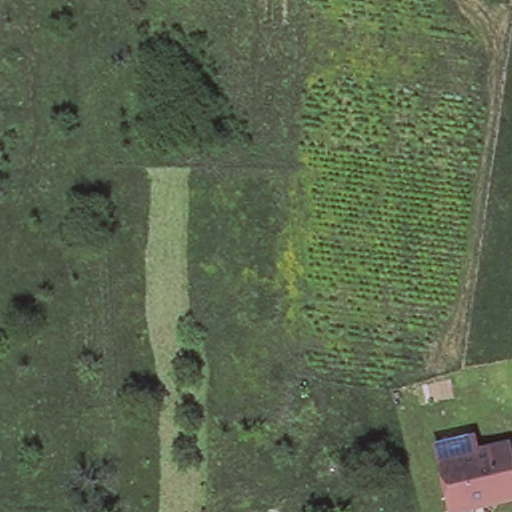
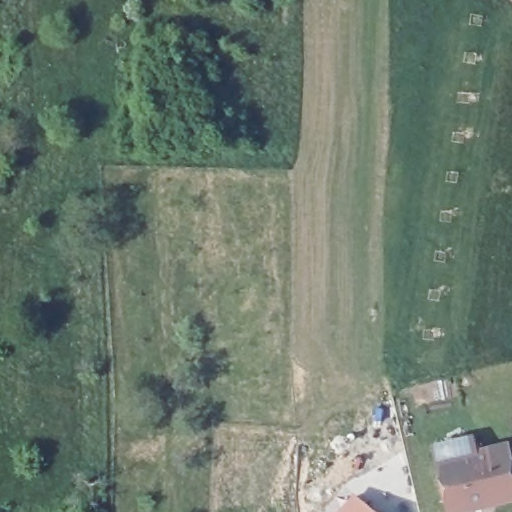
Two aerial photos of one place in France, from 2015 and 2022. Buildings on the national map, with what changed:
unchanged [(455,512),(450,512),(438,460),(452,457),(465,454),(500,446),(507,444),(512,465),(512,499),(499,502),(472,508),(465,509),(455,512)]
new [(355,496),(375,512),(341,512),(355,496)]

